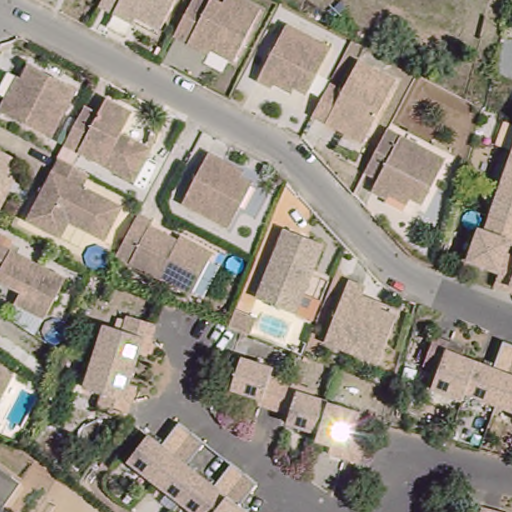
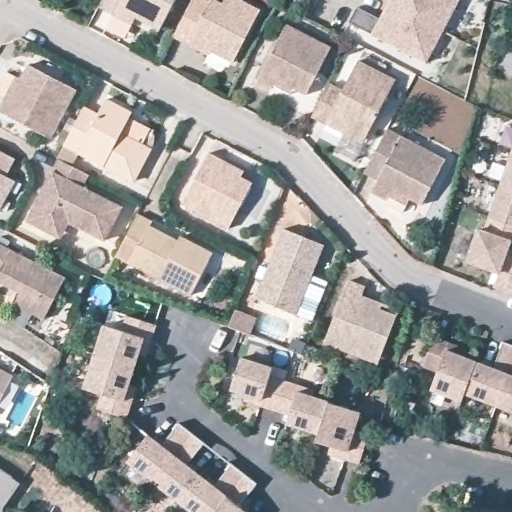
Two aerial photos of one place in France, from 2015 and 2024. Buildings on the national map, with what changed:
unchanged [(95,10),(101,0),(175,0),(156,35),(132,22),(129,29),(111,19),(95,10)]
unchanged [(193,44),(179,37),(198,0),(211,0),(215,2),(216,0),(224,0),(229,3),(231,0),(247,0),(266,10),(239,61),(217,49),(213,55),(193,44)]
new [(355,10),(378,22),(389,0),(452,0),(458,3),(425,66),(347,25),(355,10)]
unchanged [(274,85),(272,89),(258,81),(288,24),(330,46),(305,94),(295,89),(293,94),(274,85)]
unchanged [(0,104),(3,98),(14,77),(21,80),(28,66),(76,91),(51,140),(0,113),(0,104)]
unchanged [(307,121),(324,89),(339,96),(354,67),(391,86),(358,148),(340,139),(322,129),(307,121)]
unchanged [(132,115),(121,135),(151,151),(134,184),(63,147),(84,109),(98,115),(106,101),(132,115)]
unchanged [(400,199),(397,204),(382,196),(388,185),(374,177),(398,132),(451,160),(428,204),(420,200),(417,206),(400,199)]
unchanged [(3,210),(0,209),(0,148),(19,158),(9,177),(18,182),(3,210)]
unchanged [(231,230),(184,204),(210,153),(225,161),(246,172),(242,180),(253,185),(231,230)]
unchanged [(29,216),(60,155),(89,170),(82,184),(121,204),(103,237),(68,220),(61,234),(54,230),(29,216)]
unchanged [(499,288),(503,277),(470,263),(481,231),(490,235),(496,221),(508,185),(512,174),(512,293),(499,288)]
unchanged [(121,257),(143,214),(157,221),(154,228),(180,241),(183,235),(218,254),(215,260),(196,296),(121,257)]
unchanged [(327,245),(301,314),(261,300),(287,230),(327,245)]
unchanged [(0,275),(2,270),(0,269),(0,240),(1,240),(69,275),(49,315),(21,300),(26,290),(16,285),(0,276),(0,275)]
unchanged [(367,357),(330,343),(353,280),(369,285),(367,295),(387,302),(384,310),(400,316),(388,351),(383,362),(367,357)]
unchanged [(143,400),(139,415),(101,406),(105,390),(90,386),(98,350),(106,321),(119,324),(122,310),(158,318),(155,335),(152,350),(145,348),(141,367),(138,381),(140,381),(147,382),(143,400)]
unchanged [(512,343),(512,412),(498,407),(468,396),(465,402),(431,390),(437,372),(421,366),(429,337),(456,346),(473,352),(486,357),(484,363),(500,369),(509,342),(512,343)]
unchanged [(324,431),(282,419),(284,413),(264,407),(251,404),(253,396),(238,392),(247,358),(275,366),(272,376),(305,385),(319,390),(316,399),(363,412),(359,428),(374,432),(365,462),(350,458),(335,454),(337,445),(322,440),(324,431)]
unchanged [(2,408),(0,412),(0,367),(18,376),(2,408)]
unchanged [(165,446),(182,423),(208,443),(190,465),(218,485),(234,463),(260,483),(244,505),(253,512),(196,512),(131,462),(150,436),(165,446)]
unchanged [(0,512),(0,481),(15,492),(0,512)]
unchanged [(492,509),(501,512),(475,512),(478,504),(492,509)]

